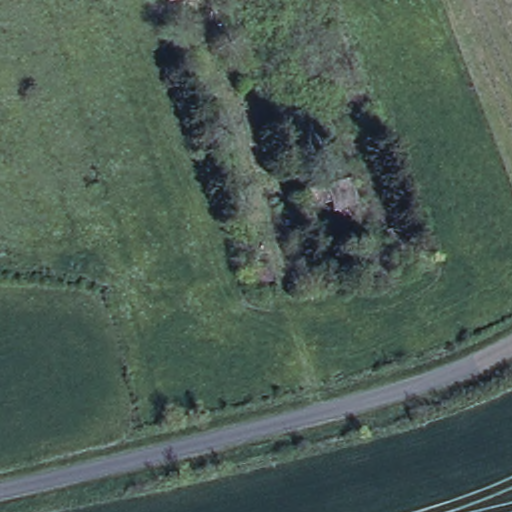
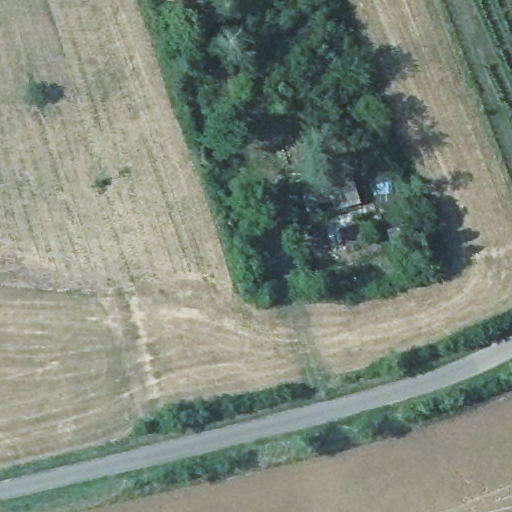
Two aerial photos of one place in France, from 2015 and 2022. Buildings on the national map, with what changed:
unchanged [(172,8),(169,0),(193,0),(172,8)]
unchanged [(355,178),(364,206),(338,211),(337,203),(310,210),(305,188),(355,178)]

